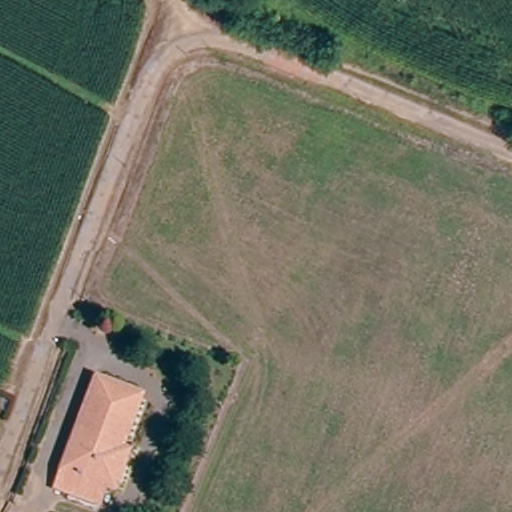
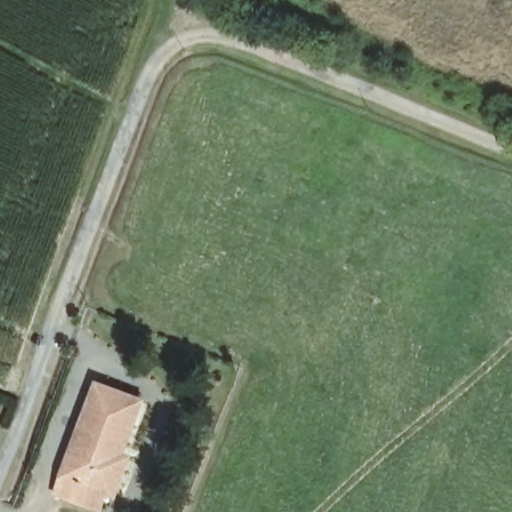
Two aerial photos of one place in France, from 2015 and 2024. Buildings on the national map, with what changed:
unchanged [(138,402),(116,457),(123,459),(110,494),(95,488),(89,507),(55,493),(94,387),(138,402)]

